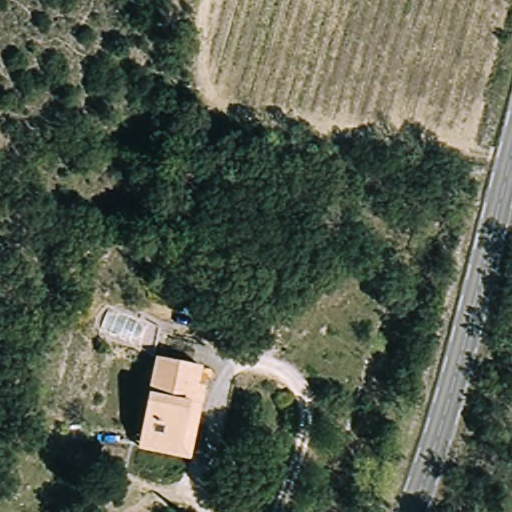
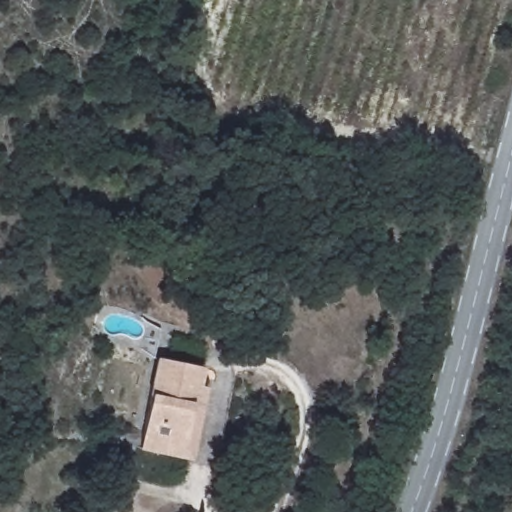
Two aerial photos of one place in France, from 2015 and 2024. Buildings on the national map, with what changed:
unchanged [(163,344),(205,355),(198,388),(186,448),(142,438),(163,344)]
unchanged [(213,392),(197,463),(139,450),(142,438),(186,448),(198,388),(213,392)]

